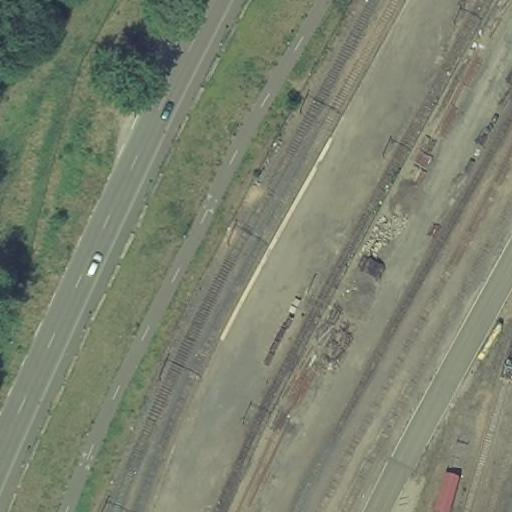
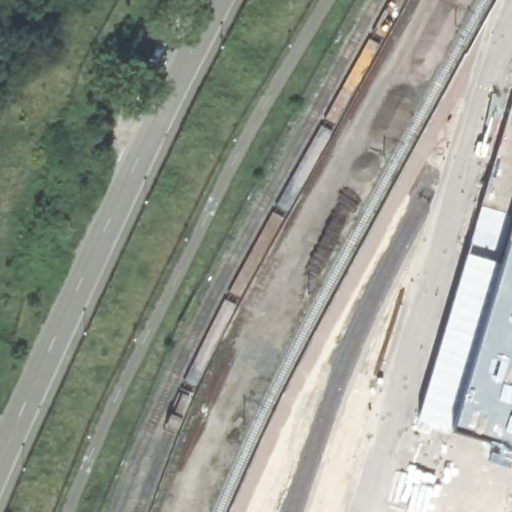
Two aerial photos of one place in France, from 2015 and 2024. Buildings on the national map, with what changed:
unchanged [(119,0),(82,75),(43,215),(0,252),(0,0),(119,0)]
new [(512,98),(512,213),(512,214),(479,204),(493,156),(512,98)]
new [(512,214),(512,213),(512,442),(499,438),(417,417),(479,204),(512,214)]

